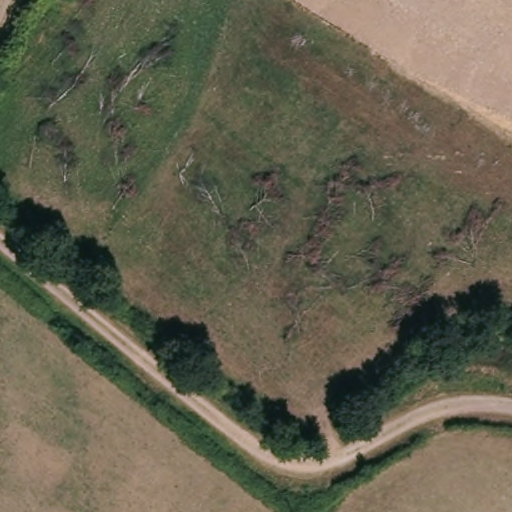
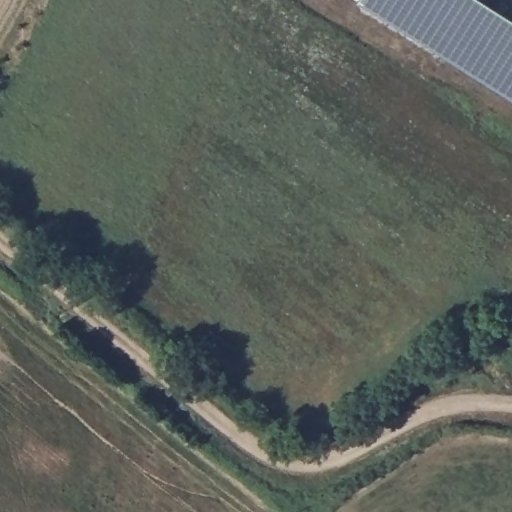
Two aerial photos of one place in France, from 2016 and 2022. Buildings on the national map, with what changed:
new [(360,0),(486,0),(512,16),(512,98),(359,0),(360,0)]

